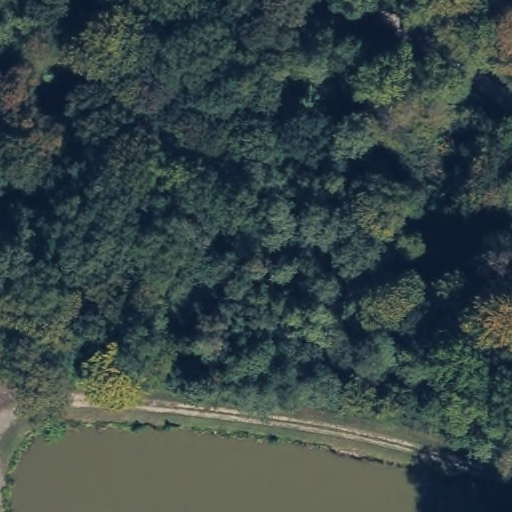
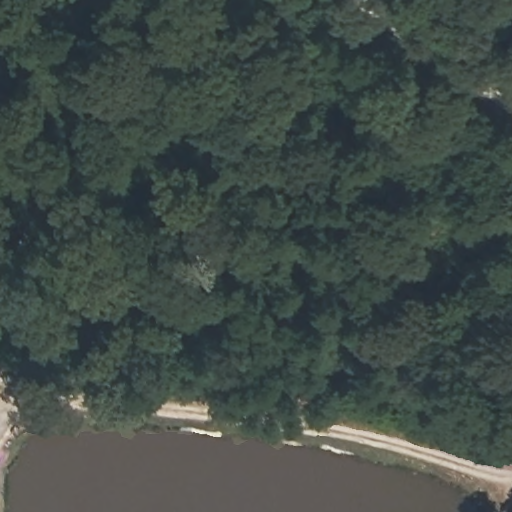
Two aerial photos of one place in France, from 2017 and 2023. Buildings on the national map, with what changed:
unchanged [(0,385),(8,393),(0,399),(0,385)]

